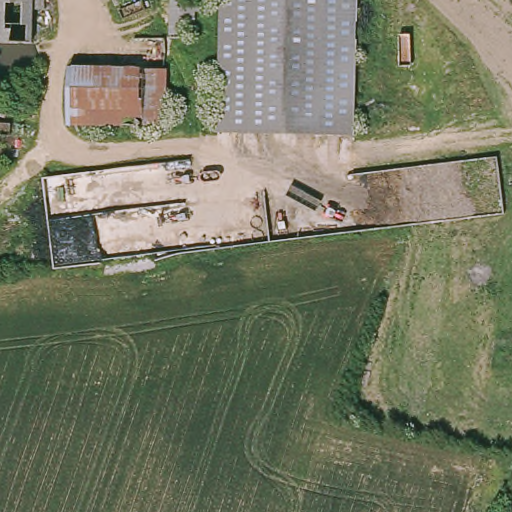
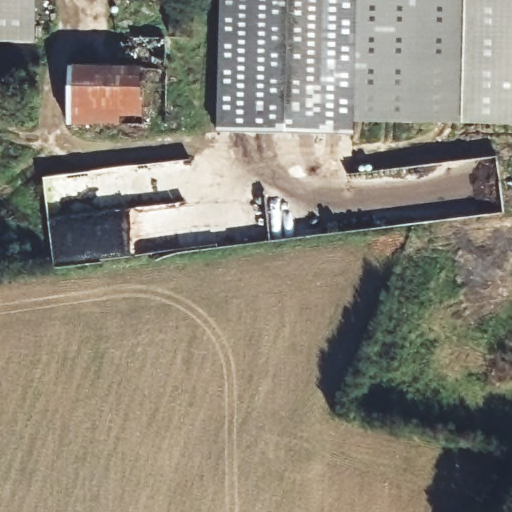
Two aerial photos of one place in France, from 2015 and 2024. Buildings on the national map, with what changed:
unchanged [(33,0),(31,49),(0,49),(0,0),(33,0)]
unchanged [(166,0),(191,0),(191,11),(190,24),(190,43),(187,43),(166,43),(166,0)]
unchanged [(351,134),(216,133),(222,0),(355,0),(354,29),(351,134)]
new [(354,29),(355,0),(512,0),(512,127),(351,125),(354,29)]
unchanged [(65,71),(145,71),(163,71),(169,71),(169,72),(166,128),(63,126),(65,71)]

